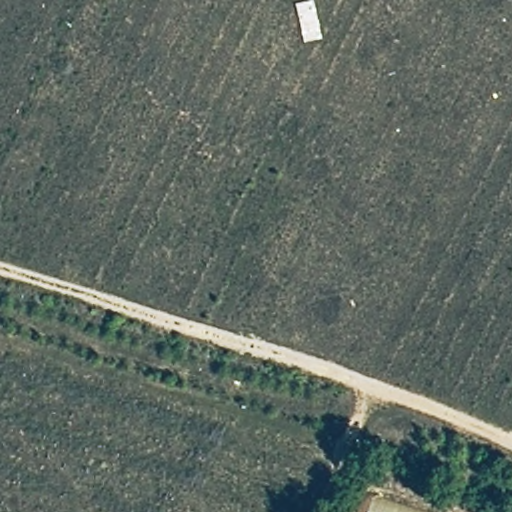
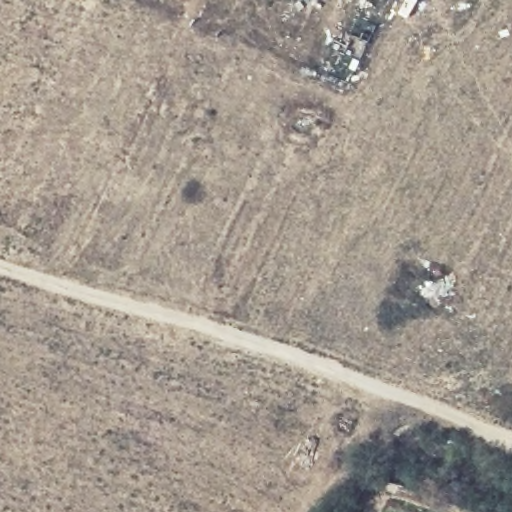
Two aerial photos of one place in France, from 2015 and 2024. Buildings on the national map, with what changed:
unchanged [(426,512),(363,512),(370,493),(426,512)]

